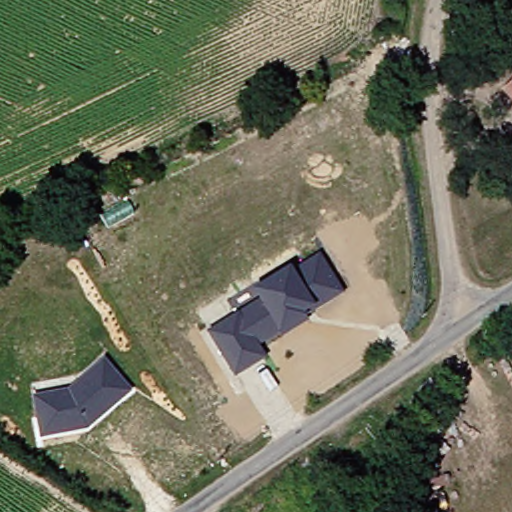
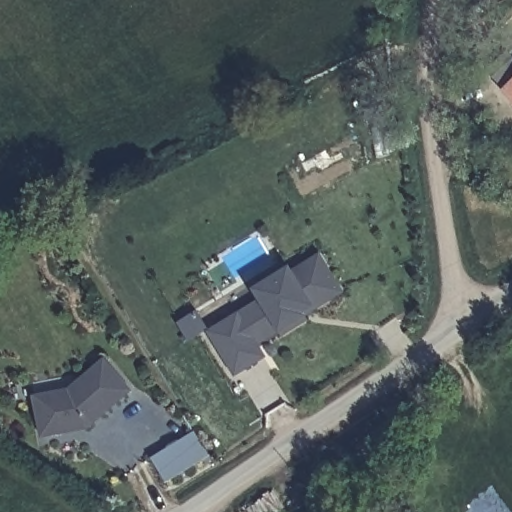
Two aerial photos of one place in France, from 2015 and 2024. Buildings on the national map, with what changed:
unchanged [(507,62),(486,80),(480,72),(500,54),(507,62)]
unchanged [(512,69),(512,110),(492,86),(512,69)]
unchanged [(257,299),(251,288),(290,265),(293,268),(319,254),(342,292),(305,316),(307,320),(280,338),(276,332),(258,344),(265,357),(234,377),(205,330),(257,299)]
unchanged [(66,388),(104,358),(132,391),(87,428),(40,437),(31,395),(66,388)]
new [(195,430),(210,455),(165,482),(150,457),(195,430)]

